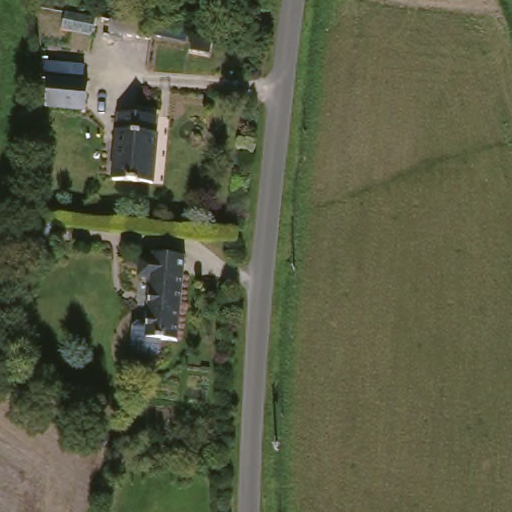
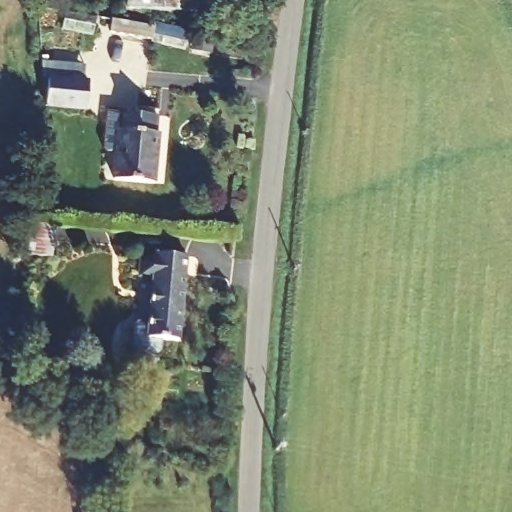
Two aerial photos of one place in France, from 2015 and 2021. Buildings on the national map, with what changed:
unchanged [(200,0),(199,10),(132,4),(132,0),(200,0)]
unchanged [(206,0),(234,0),(233,6),(205,3),(206,0)]
unchanged [(131,37),(86,32),(88,17),(112,20),(115,20),(132,24),(131,37)]
unchanged [(94,80),(91,106),(52,102),(54,76),(94,80)]
unchanged [(161,113),(158,128),(163,129),(157,179),(114,175),(120,109),(161,113)]
unchanged [(189,256),(180,338),(148,335),(156,276),(142,275),(145,255),(159,257),(160,252),(189,256)]

